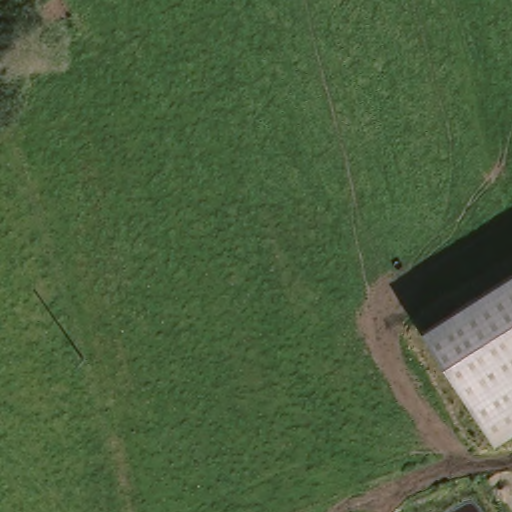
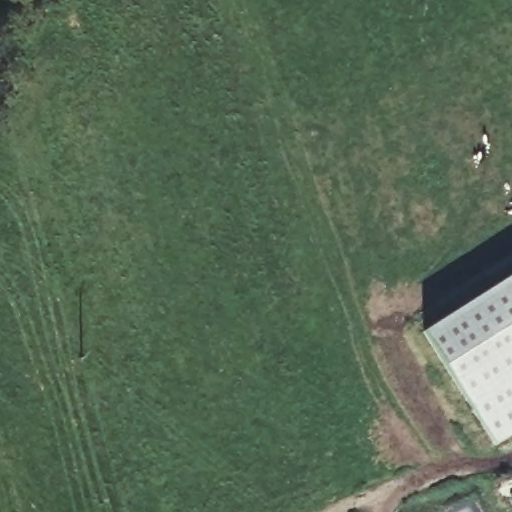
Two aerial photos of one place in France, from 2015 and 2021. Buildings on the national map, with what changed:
unchanged [(494,447),(424,332),(512,276),(512,435),(494,447)]

